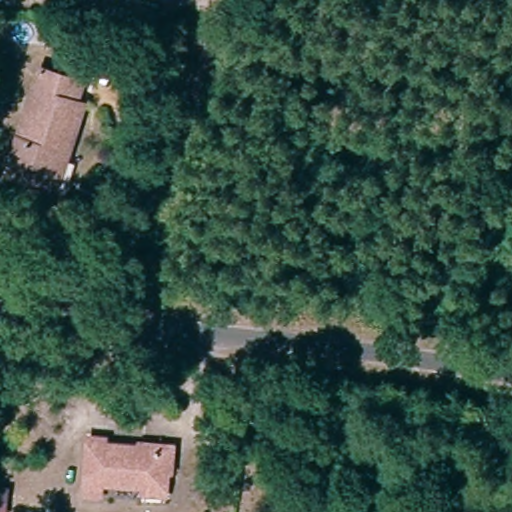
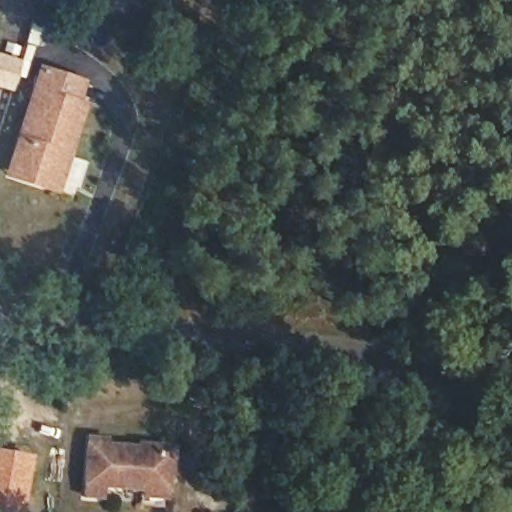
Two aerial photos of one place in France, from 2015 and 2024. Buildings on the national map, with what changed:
new [(12,92),(0,88),(0,53),(22,60),(12,92)]
unchanged [(12,179),(16,165),(48,72),(87,84),(81,104),(89,106),(70,164),(60,194),(12,179)]
unchanged [(144,499),(145,489),(102,487),(102,501),(82,499),(86,441),(106,442),(105,449),(170,453),(167,490),(166,502),(144,499)]
new [(19,512),(0,512),(0,448),(31,454),(19,512)]

